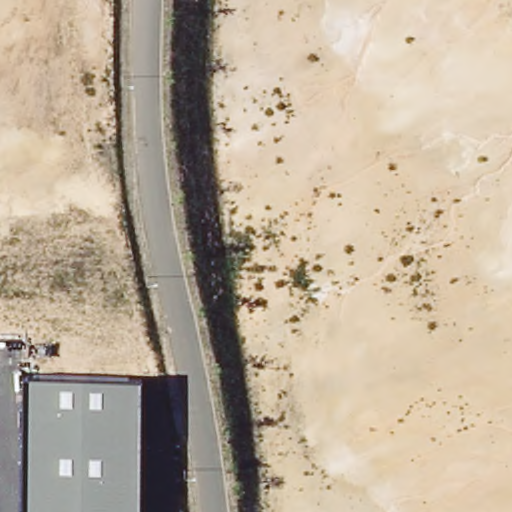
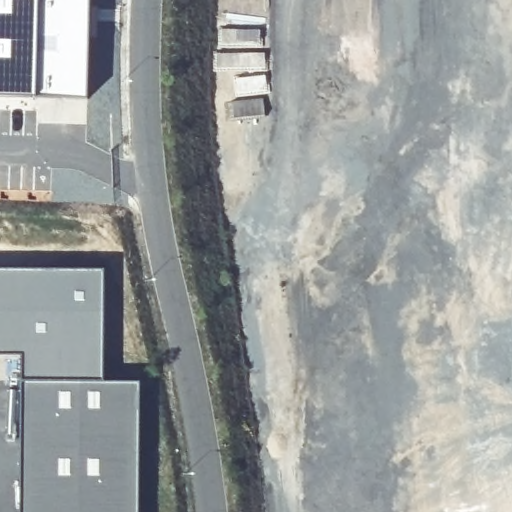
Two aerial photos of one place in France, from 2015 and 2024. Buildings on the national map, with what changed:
new [(88,97),(36,96),(0,95),(0,0),(90,0),(88,97)]
new [(23,381),(23,355),(0,355),(0,268),(102,270),(101,381),(23,381)]
unchanged [(22,512),(23,381),(141,381),(140,512),(22,512)]

